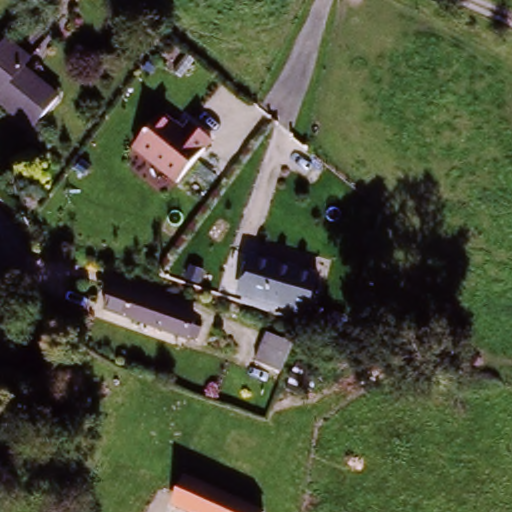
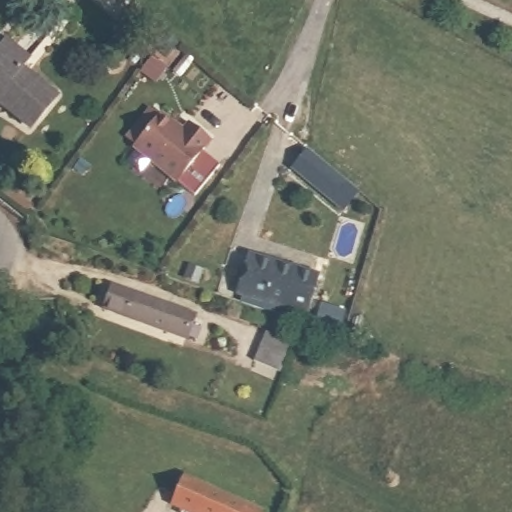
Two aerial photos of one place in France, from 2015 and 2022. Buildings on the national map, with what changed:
unchanged [(33,56),(23,70),(61,99),(35,130),(0,100),(0,98),(3,94),(0,92),(0,51),(10,38),(33,56)]
unchanged [(179,185),(132,153),(157,117),(181,134),(187,125),(210,140),(179,185)]
new [(359,192),(344,209),(292,167),(305,150),(359,192)]
unchanged [(317,278),(307,314),(239,294),(249,258),(317,278)]
unchanged [(185,339),(104,313),(112,291),(192,317),(189,326),(199,330),(195,341),(185,337),(185,339)]
unchanged [(294,344),(285,374),(255,364),(265,335),(294,344)]
unchanged [(184,483),(252,512),(183,512),(174,508),(184,483)]

